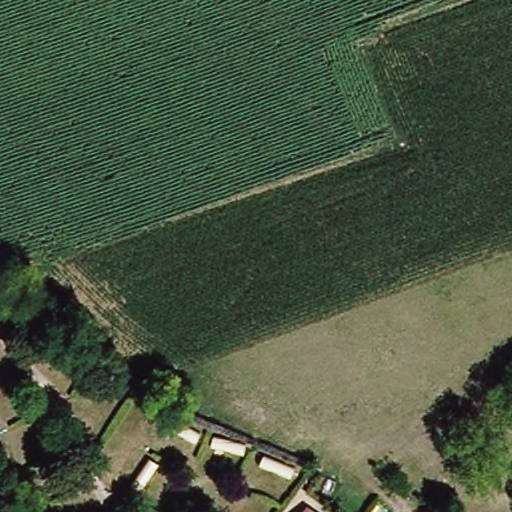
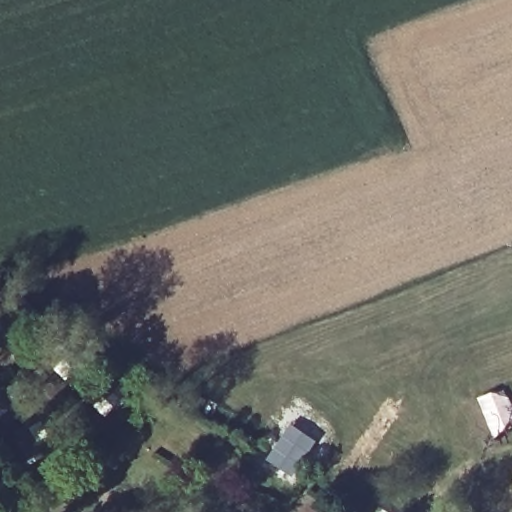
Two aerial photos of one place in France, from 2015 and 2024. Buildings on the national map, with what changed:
new [(292,476),(267,460),(292,424),(316,440),(292,476)]
unchanged [(304,512),(309,506),(317,512),(304,512)]
demolished [(318,512),(322,507),(327,512),(318,512)]

